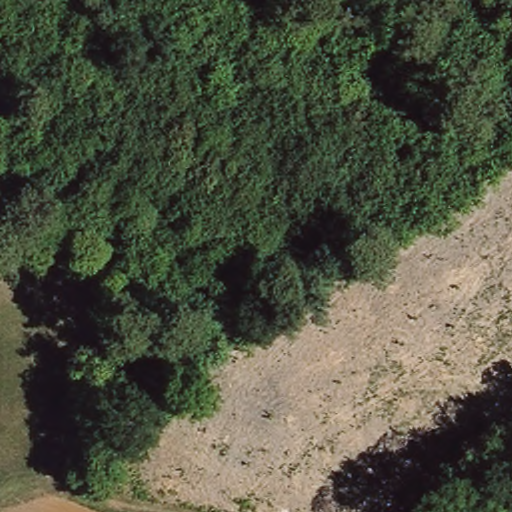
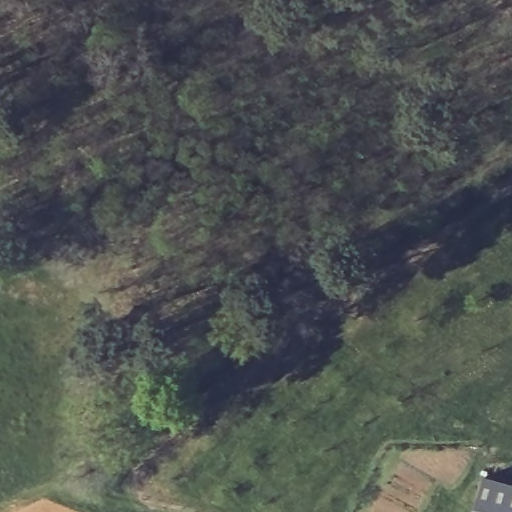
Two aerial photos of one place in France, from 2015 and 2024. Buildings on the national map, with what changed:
new [(512,512),(478,512),(488,474),(512,481),(512,512)]

